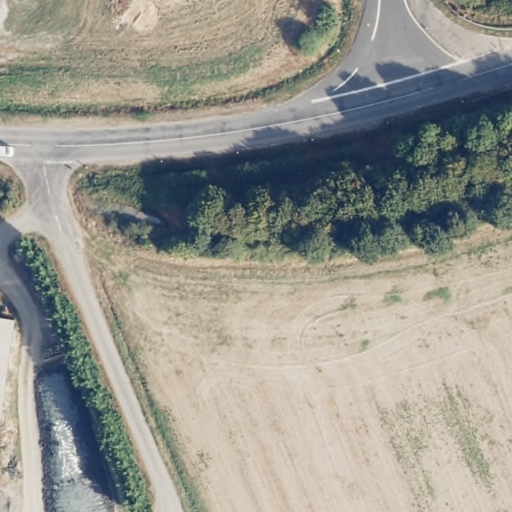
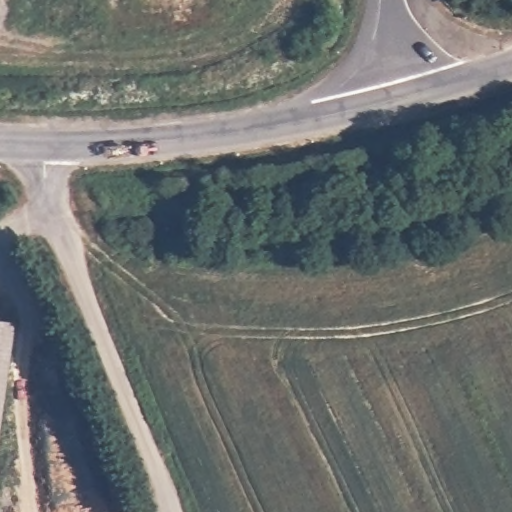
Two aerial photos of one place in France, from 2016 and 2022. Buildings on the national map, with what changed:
unchanged [(0,406),(0,323),(12,325),(0,406)]

